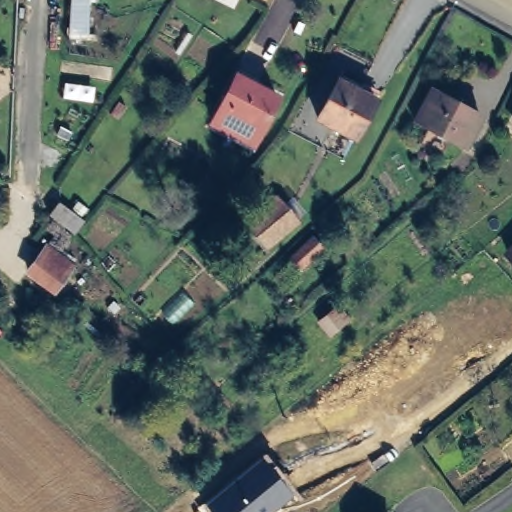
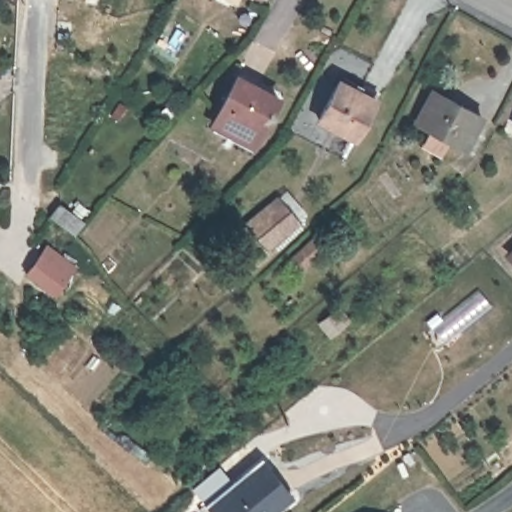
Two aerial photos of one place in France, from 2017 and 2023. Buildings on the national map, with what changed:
unchanged [(260,142),(219,119),(242,72),(285,95),(260,142)]
unchanged [(355,135),(319,116),(338,77),(352,85),(355,80),(362,84),(360,89),(376,97),(355,135)]
unchanged [(465,149),(416,124),(432,92),(481,118),(465,149)]
unchanged [(302,224),(274,247),(254,224),(282,199),(302,224)]
unchanged [(50,217),(60,205),(84,224),(74,235),(50,217)]
unchanged [(324,252),(302,271),(292,258),(312,239),(324,252)]
unchanged [(71,271),(51,297),(24,272),(49,242),(71,271)]
unchanged [(345,317),(327,332),(316,320),(334,305),(345,317)]
unchanged [(211,512),(205,504),(262,457),(292,496),(272,512),(211,512)]

